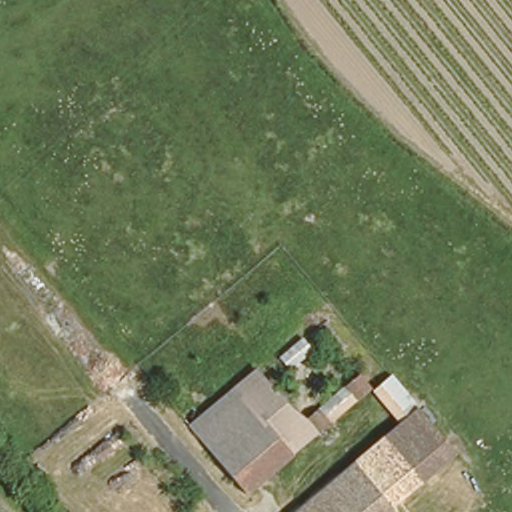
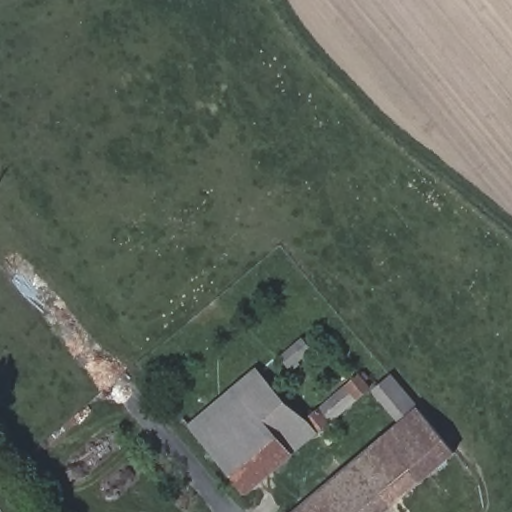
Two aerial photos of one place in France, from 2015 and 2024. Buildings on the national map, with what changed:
unchanged [(306,340),(313,349),(288,371),(280,361),(306,340)]
unchanged [(260,366),(267,375),(199,431),(192,422),(260,366)]
unchanged [(359,374),(369,388),(356,400),(352,396),(326,418),(328,421),(316,433),(306,421),(359,374)]
unchanged [(267,375),(290,402),(268,420),(237,446),(261,475),(246,488),(199,431),(267,375)]
unchanged [(457,452),(421,482),(384,439),(400,426),(373,391),(390,375),(457,452)]
unchanged [(273,427),(289,413),(308,437),(261,475),(237,446),(268,420),(273,427)]
unchanged [(421,482),(386,512),(298,512),(384,439),(421,482)]

